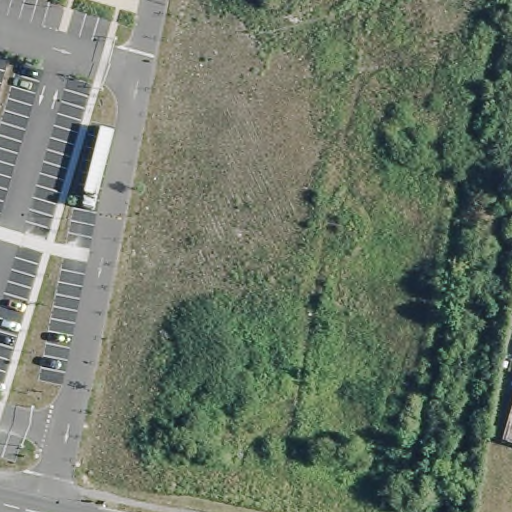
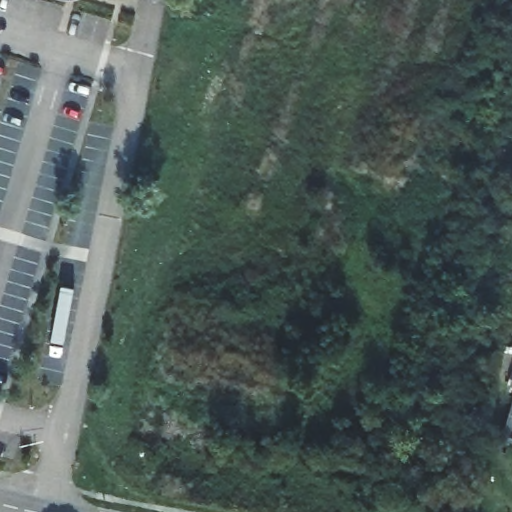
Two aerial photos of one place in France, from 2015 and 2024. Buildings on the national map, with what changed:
[]

